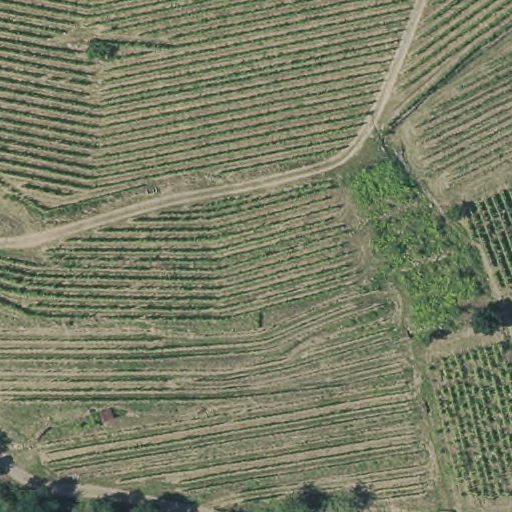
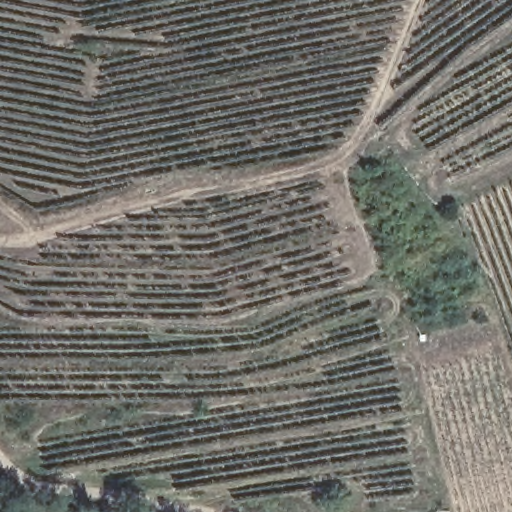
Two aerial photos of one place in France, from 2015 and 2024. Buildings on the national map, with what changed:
unchanged [(5,483),(18,493),(47,496),(47,512),(3,512),(0,510),(0,494),(5,483)]
unchanged [(449,510),(449,512),(434,512),(435,508),(449,510)]

